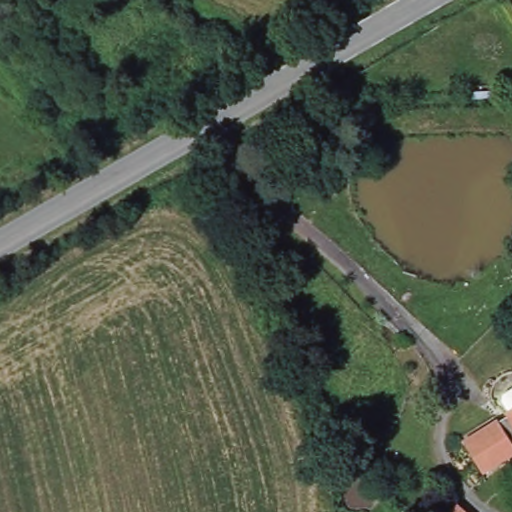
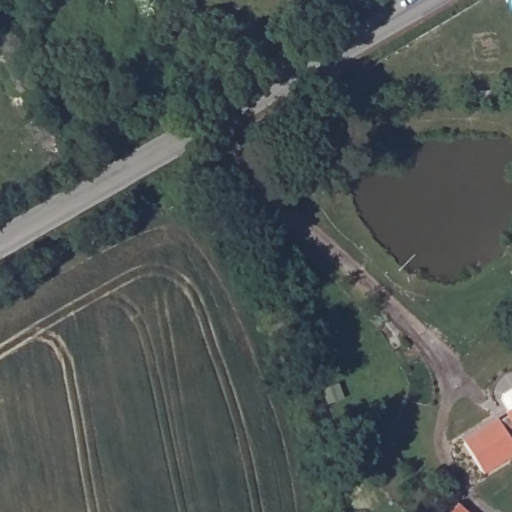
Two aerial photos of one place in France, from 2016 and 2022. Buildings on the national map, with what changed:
unchanged [(507,409),(511,406),(505,393),(512,389),(512,455),(481,474),(463,446),(511,417),(507,409)]
unchanged [(452,504),(461,512),(445,512),(452,504)]

